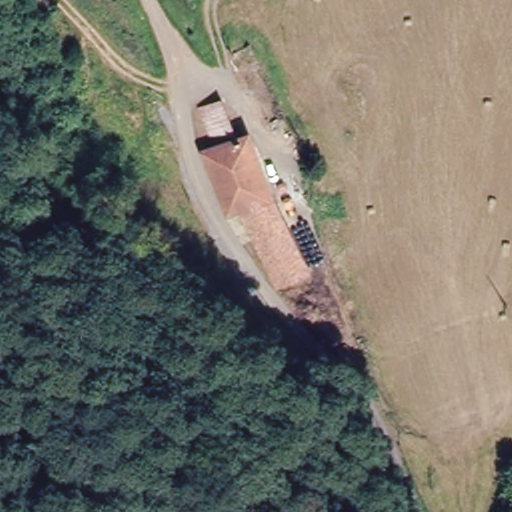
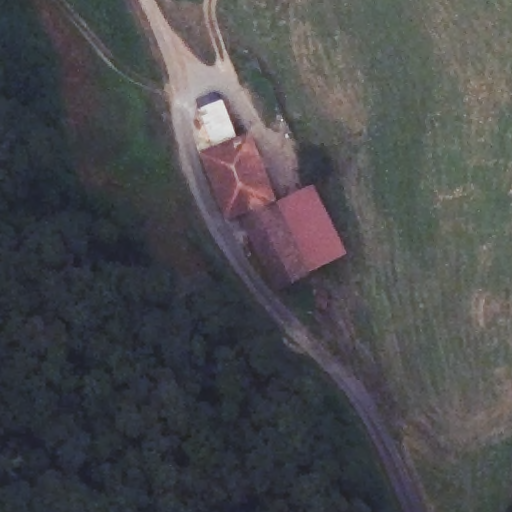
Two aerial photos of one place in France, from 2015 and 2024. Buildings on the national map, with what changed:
unchanged [(233,70),(228,56),(245,51),(249,62),(233,70)]
unchanged [(212,155),(197,115),(219,106),(235,146),(212,155)]
unchanged [(212,155),(235,146),(246,142),(313,270),(282,286),(278,282),(241,212),(228,219),(202,159),(212,155)]
new [(277,201),(314,182),(348,254),(313,270),(277,201)]

